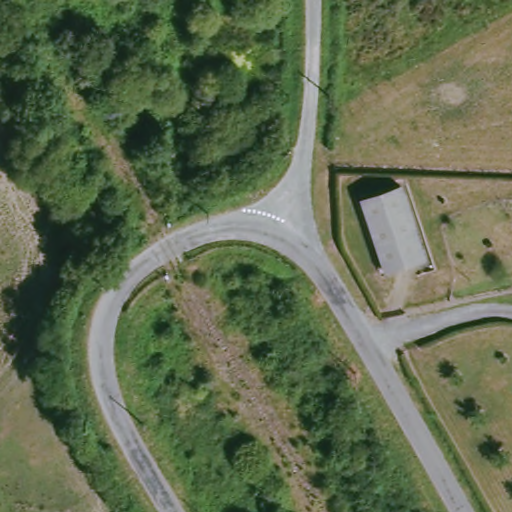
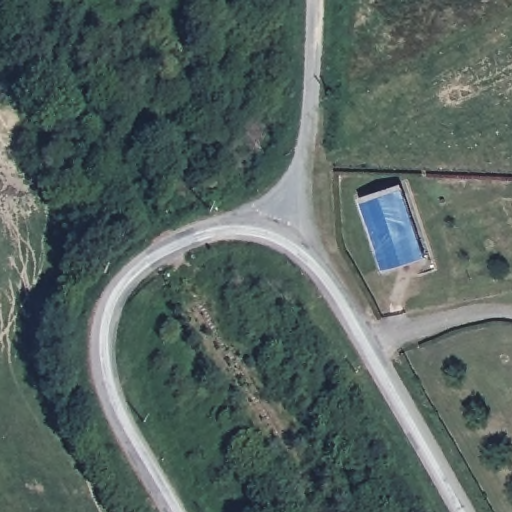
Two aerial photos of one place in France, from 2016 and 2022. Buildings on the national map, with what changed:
unchanged [(427,255),(393,270),(362,202),(395,188),(427,255)]

